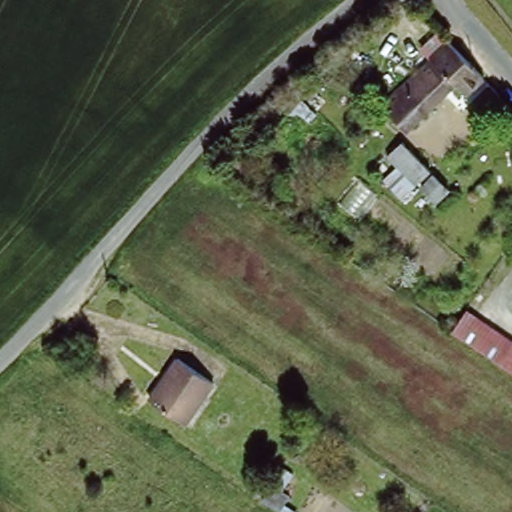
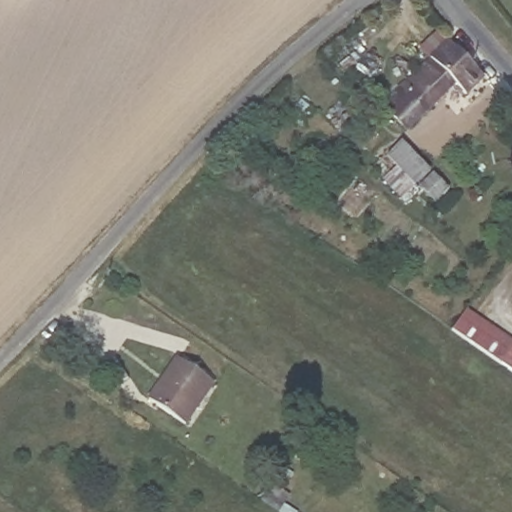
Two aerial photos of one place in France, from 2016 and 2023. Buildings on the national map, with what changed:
unchanged [(451,45),(486,81),(468,99),(457,88),(409,135),(385,109),(451,45)]
unchanged [(453,194),(439,208),(393,161),(407,147),(453,194)]
unchanged [(512,343),(512,375),(449,333),(465,311),(512,343)]
unchanged [(180,361),(217,387),(188,428),(151,402),(180,361)]

